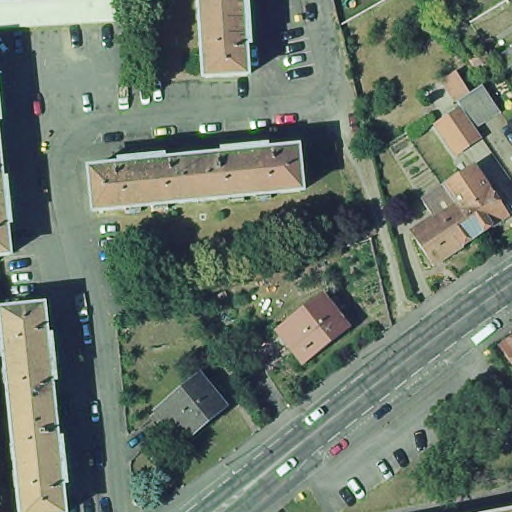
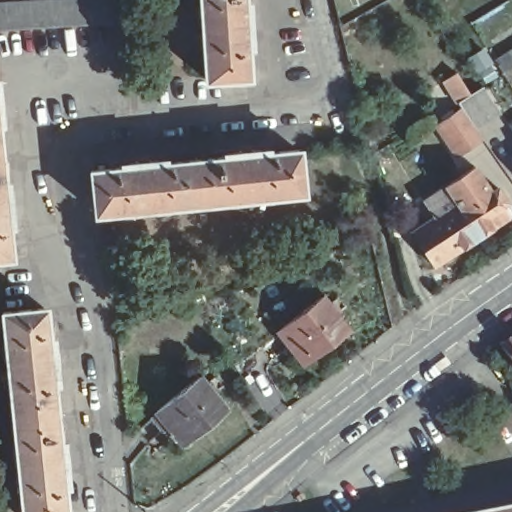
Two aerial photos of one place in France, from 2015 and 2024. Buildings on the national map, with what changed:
unchanged [(112,23),(0,30),(0,2),(30,0),(111,0),(112,23)]
unchanged [(240,17),(245,17),(247,31),(240,31),(243,77),(201,79),(196,0),(238,0),(240,17)]
unchanged [(478,71),(477,72),(469,58),(470,58),(482,49),(491,63),(478,71)]
unchanged [(512,68),(503,74),(495,61),(510,52),(512,50),(512,68)]
unchanged [(457,154),(437,126),(462,108),(457,102),(444,81),(457,73),(470,94),(482,86),(500,111),(474,126),(482,137),(457,154)]
unchanged [(0,94),(2,107),(0,107),(0,94)]
unchanged [(194,158),(239,154),(238,148),(252,147),(252,153),(297,148),(302,190),(198,200),(194,158)]
unchanged [(0,152),(5,197),(11,196),(12,210),(7,210),(11,256),(0,257),(0,152)]
unchanged [(198,200),(95,211),(90,169),(135,164),(135,158),(149,157),(150,163),(194,158),(198,200)]
unchanged [(424,200),(443,187),(444,187),(460,176),(475,166),(486,183),(485,183),(492,192),(497,187),(507,202),(508,202),(512,207),(512,213),(508,216),(477,236),(447,257),(434,265),(412,232),(424,224),(435,217),(424,200)]
unchanged [(317,301),(343,334),(300,368),(274,335),(317,301)]
unchanged [(45,358),(50,357),(52,371),(46,371),(50,416),(9,420),(0,340),(0,316),(40,312),(45,358)]
unchanged [(512,339),(512,363),(500,347),(512,339)]
unchanged [(159,417),(164,413),(162,411),(205,376),(231,409),(190,443),(175,426),(170,431),(159,417)]
unchanged [(55,461),(61,460),(62,474),(57,475),(60,512),(18,512),(9,420),(50,416),(55,461)]

